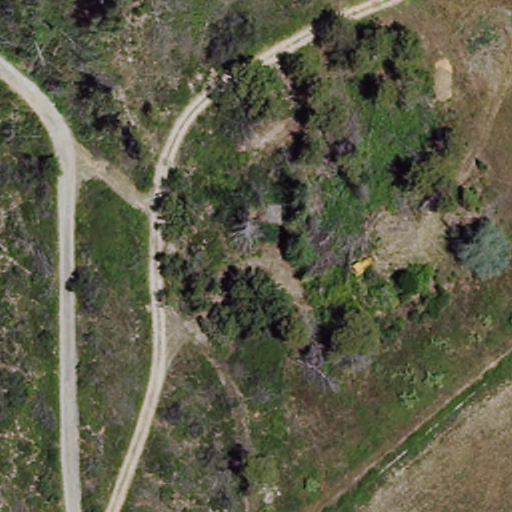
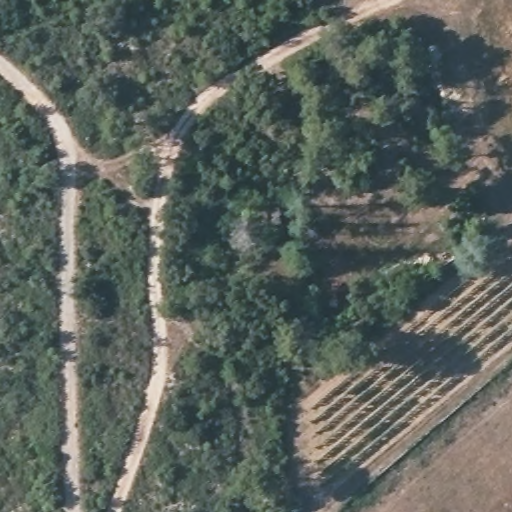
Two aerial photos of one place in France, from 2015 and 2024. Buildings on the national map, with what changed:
unchanged [(267,207),(266,224),(263,224),(243,223),(243,206),(267,207)]

